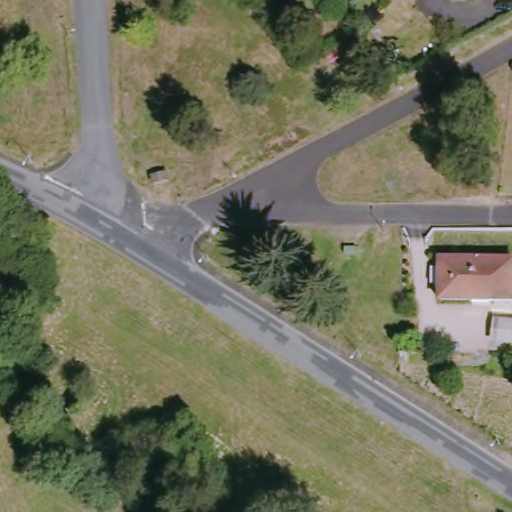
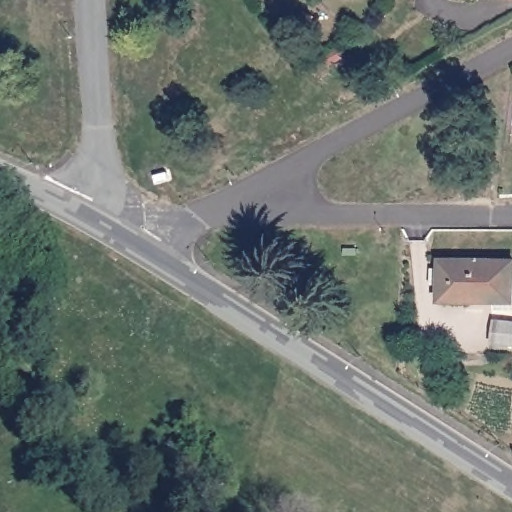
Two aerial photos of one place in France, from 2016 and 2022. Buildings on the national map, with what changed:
unchanged [(392,225),(392,237),(380,237),(380,225),(392,225)]
unchanged [(511,261),(511,303),(468,301),(468,299),(438,298),(440,260),(511,261)]
unchanged [(508,322),(512,322),(512,344),(508,344),(508,322)]

